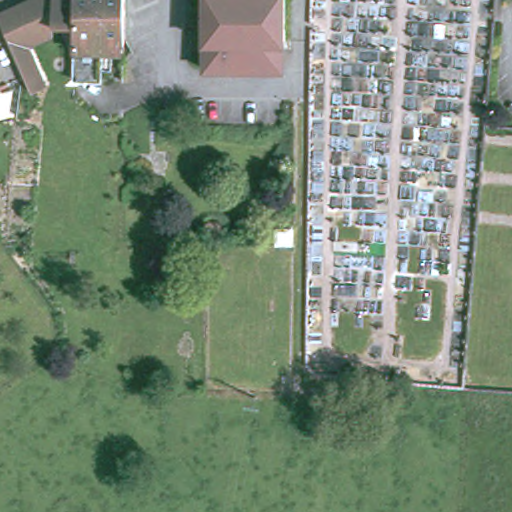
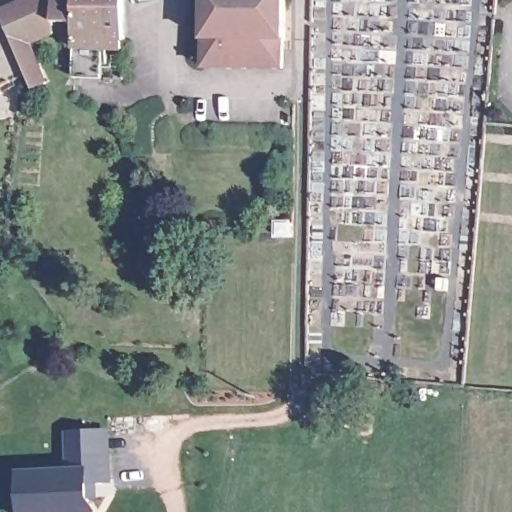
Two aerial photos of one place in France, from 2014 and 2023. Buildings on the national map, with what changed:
unchanged [(13,41),(0,12),(0,8),(19,0),(75,0),(74,18),(56,18),(54,23),(58,29),(31,41),(48,79),(33,86),(13,41)]
unchanged [(74,43),(74,18),(75,0),(124,0),(125,45),(104,44),(103,75),(73,74),(74,43)]
unchanged [(290,0),(290,40),(288,40),(288,69),(211,69),(211,0),(290,0)]
unchanged [(298,215),(298,229),(284,228),(284,226),(284,215),(298,215)]
unchanged [(206,238),(206,223),(220,223),(221,236),(221,237),(206,238)]
new [(109,431),(110,481),(89,483),(89,498),(99,512),(20,512),(18,473),(64,469),(64,432),(109,431)]

